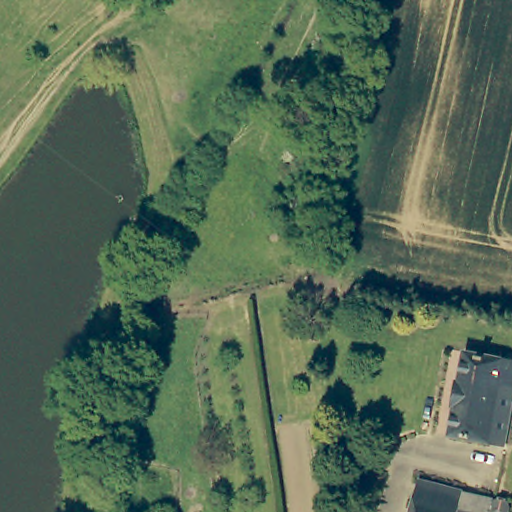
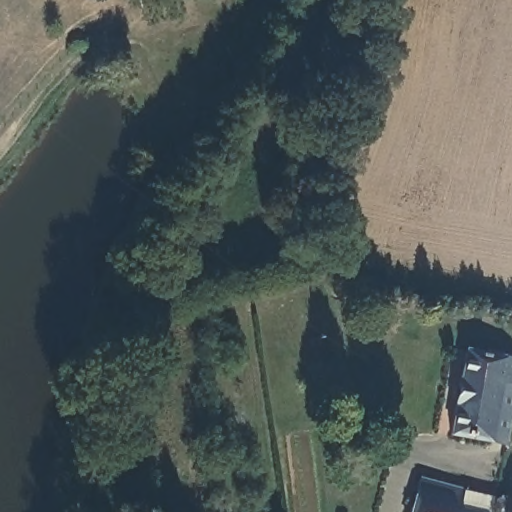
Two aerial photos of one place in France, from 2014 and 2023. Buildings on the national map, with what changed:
unchanged [(512,382),(504,381),(492,441),(451,434),(468,349),(512,357),(512,382)]
unchanged [(512,382),(512,436),(510,445),(492,441),(504,381),(512,382)]
unchanged [(467,490),(463,508),(479,512),(413,512),(421,478),(467,490)]

